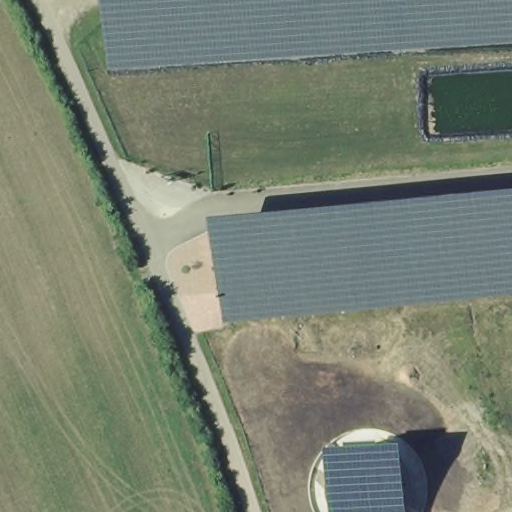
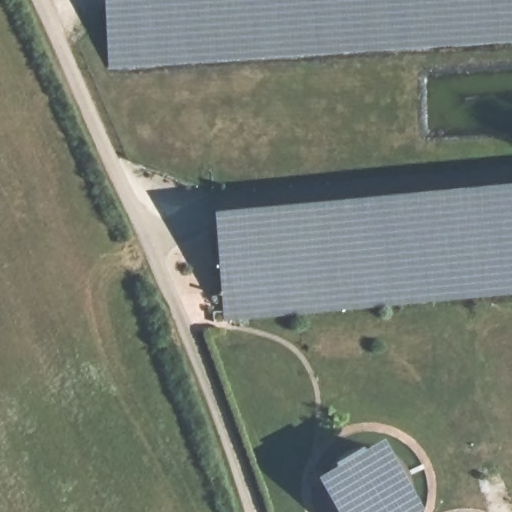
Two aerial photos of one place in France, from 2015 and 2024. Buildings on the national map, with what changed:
unchanged [(103,0),(512,0),(512,41),(108,68),(103,0)]
unchanged [(223,317),(214,211),(512,184),(512,290),(223,317)]
unchanged [(407,451),(410,512),(334,512),(329,454),(407,451)]

